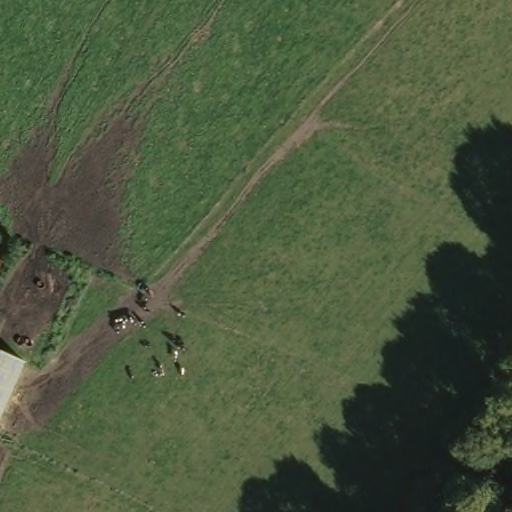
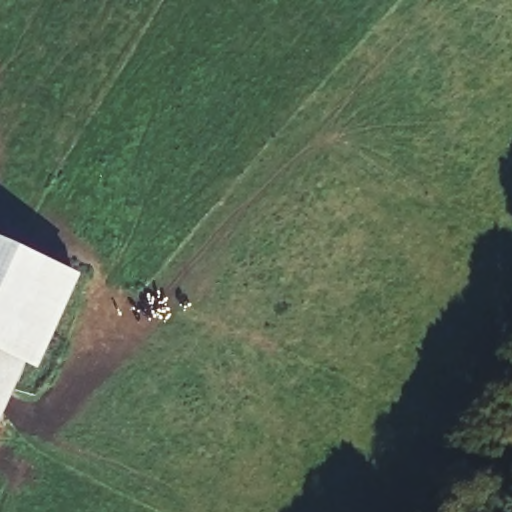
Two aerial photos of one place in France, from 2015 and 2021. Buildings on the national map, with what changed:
new [(35,370),(22,365),(0,416),(0,241),(78,275),(35,370)]
demolished [(0,413),(0,353),(23,362),(0,413)]

